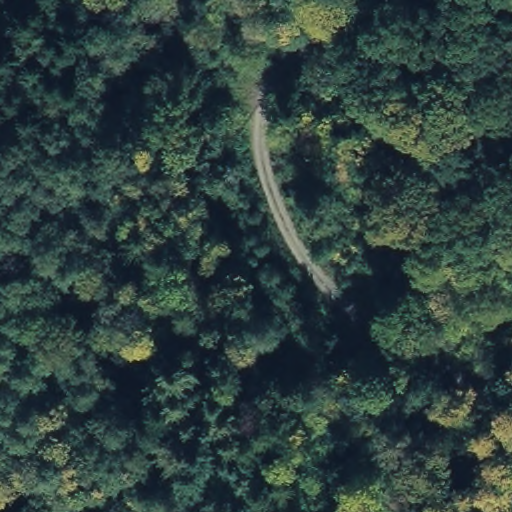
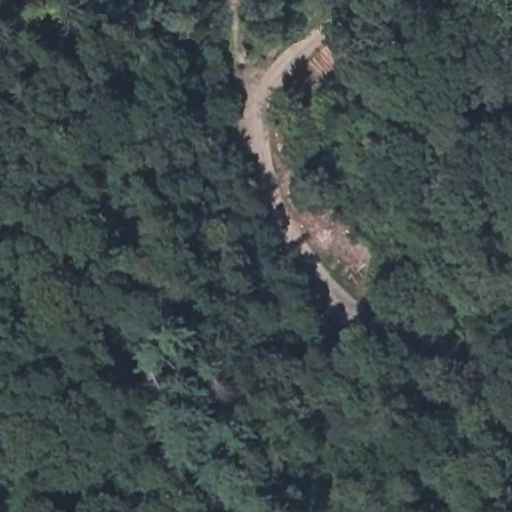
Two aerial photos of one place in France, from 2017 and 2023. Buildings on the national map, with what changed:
unchanged [(381,280),(370,298),(343,280),(355,262),(381,280)]
unchanged [(372,355),(353,353),(353,338),(371,338),(372,355)]

